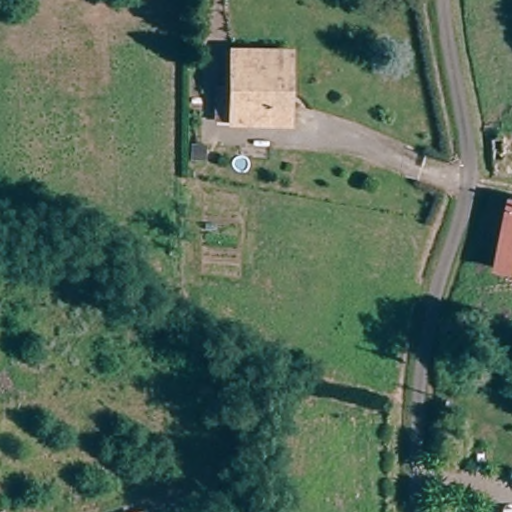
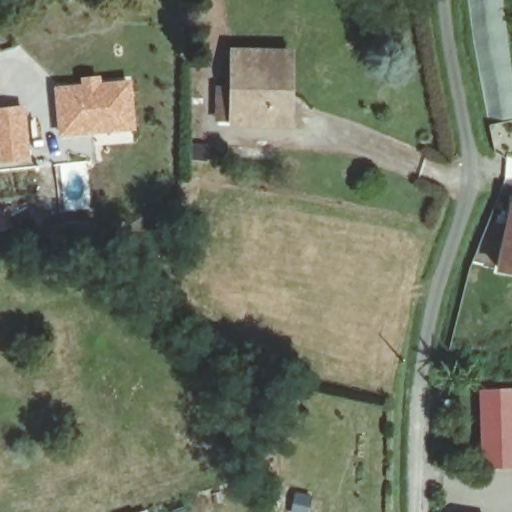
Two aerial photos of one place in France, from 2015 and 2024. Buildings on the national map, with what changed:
unchanged [(287,121),(229,120),(231,50),(289,51),(288,76),(287,98),(287,121)]
new [(80,82),(79,76),(101,74),(102,80),(132,77),(137,130),(57,137),(52,85),(80,82)]
new [(32,164),(0,165),(0,107),(27,105),(32,164)]
unchanged [(490,261),(507,195),(512,196),(512,267),(490,261)]
new [(512,388),(512,469),(481,470),(478,388),(512,388)]

